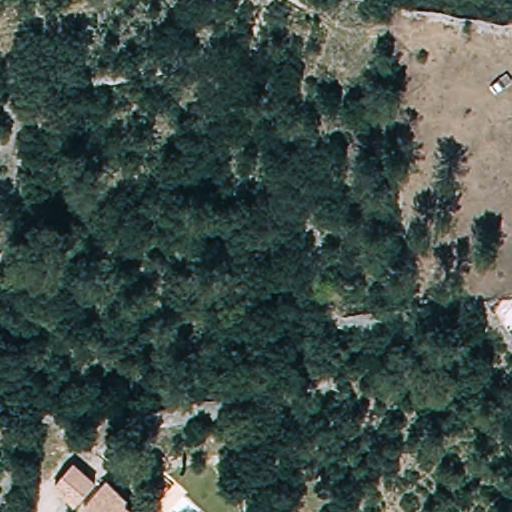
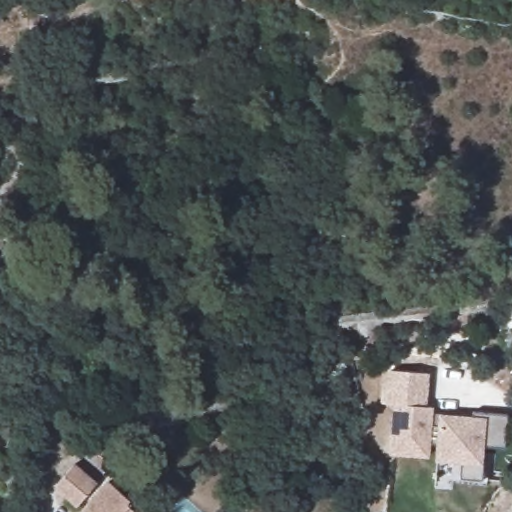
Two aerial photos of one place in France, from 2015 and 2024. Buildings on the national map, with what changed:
new [(506,415),(503,447),(484,446),(483,463),(486,460),(484,485),(434,482),(435,460),(436,442),(430,441),(429,458),(388,454),(391,405),(384,404),(386,370),(430,374),(426,405),(432,406),(432,412),(438,413),(473,416),(473,411),(506,415)]
unchanged [(78,465),(99,483),(77,508),(57,488),(78,465)]
unchanged [(194,490),(174,512),(154,512),(139,498),(168,466),(194,490)]
unchanged [(112,480),(143,512),(89,512),(87,510),(112,480)]

